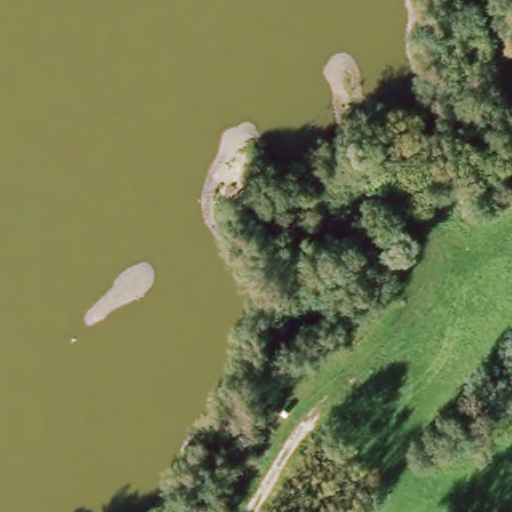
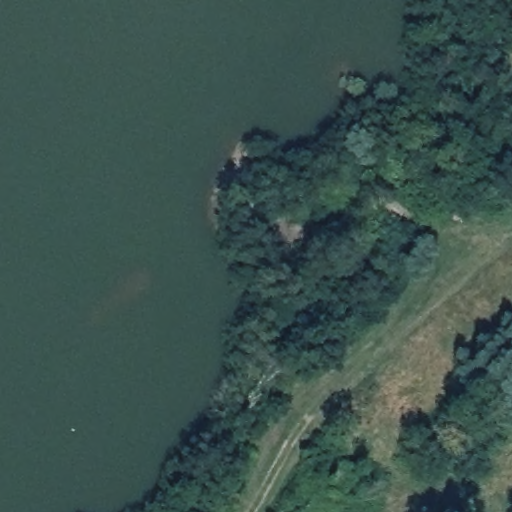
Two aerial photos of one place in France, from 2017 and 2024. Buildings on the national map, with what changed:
unchanged [(254,226),(232,199),(245,190),(267,217),(254,226)]

